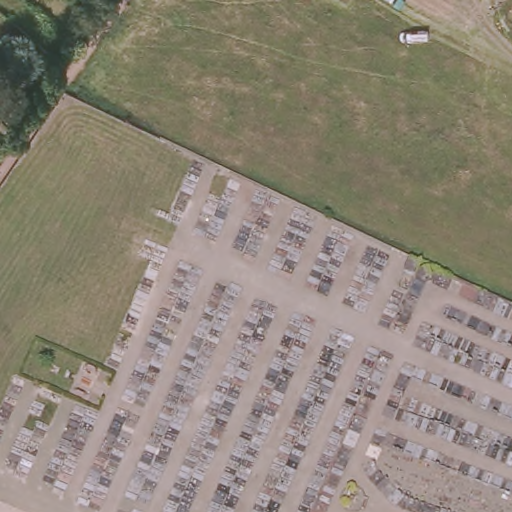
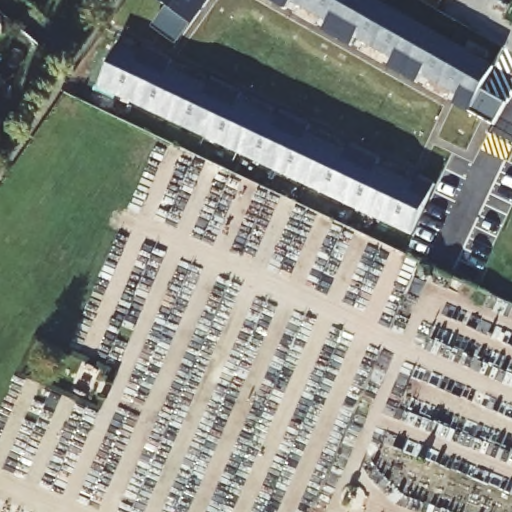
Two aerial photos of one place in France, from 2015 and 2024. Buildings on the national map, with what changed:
new [(196,25),(165,0),(213,0),(196,25)]
new [(283,7),(270,0),(287,0),(283,7)]
new [(497,66),(471,112),(454,102),(459,92),(422,73),(416,81),(388,65),(392,57),(355,35),(351,43),(322,26),(327,16),(295,0),(381,0),(497,66)]
new [(140,50),(145,39),(175,52),(169,64),(206,83),(214,70),(241,84),(238,96),(277,116),(281,105),(311,119),(308,130),(345,149),(351,136),(381,150),(377,164),(416,182),(420,174),(433,181),(411,235),(95,85),(119,42),(140,50)]
unchanged [(403,271),(410,256),(420,260),(413,276),(403,271)]

